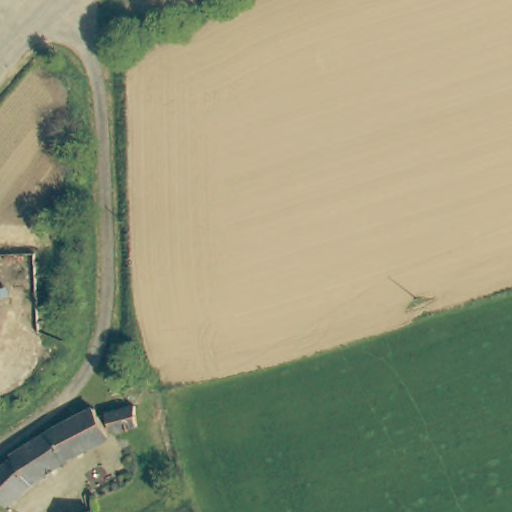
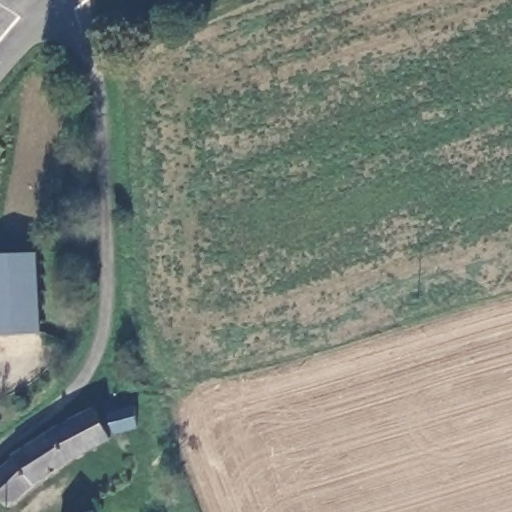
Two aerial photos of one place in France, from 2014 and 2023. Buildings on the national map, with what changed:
new [(41,335),(0,334),(0,258),(43,256),(41,335)]
unchanged [(138,428),(110,436),(105,415),(132,408),(138,428)]
unchanged [(105,445),(54,467),(6,510),(4,508),(0,504),(0,469),(34,439),(91,412),(105,445)]
demolished [(85,491),(92,512),(57,512),(54,499),(85,491)]

